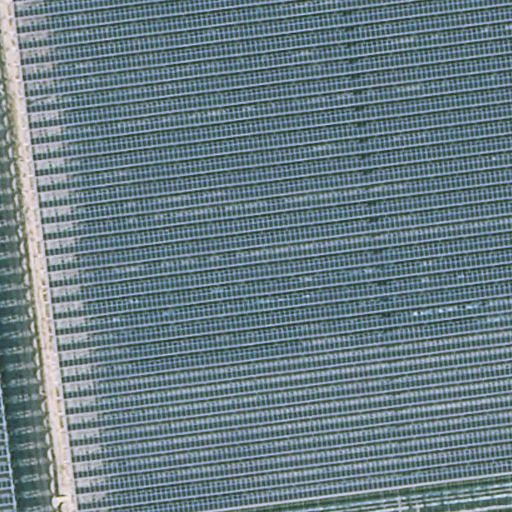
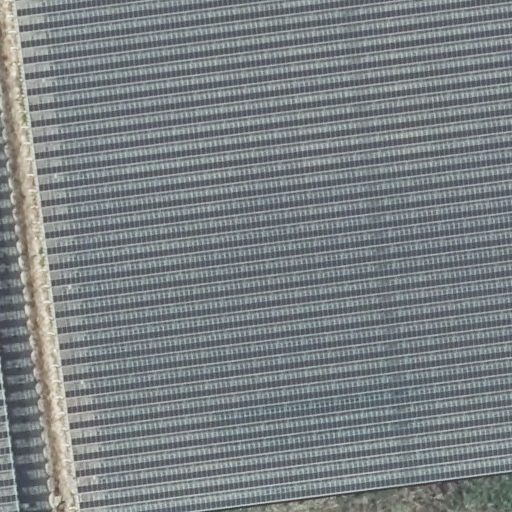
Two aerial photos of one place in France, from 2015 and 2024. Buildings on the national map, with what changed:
unchanged [(79,512),(13,0),(512,0),(512,512),(79,512)]
unchanged [(0,512),(0,377),(17,512),(0,512)]

